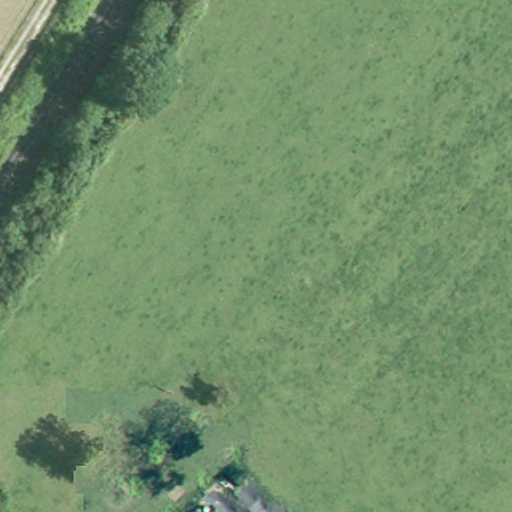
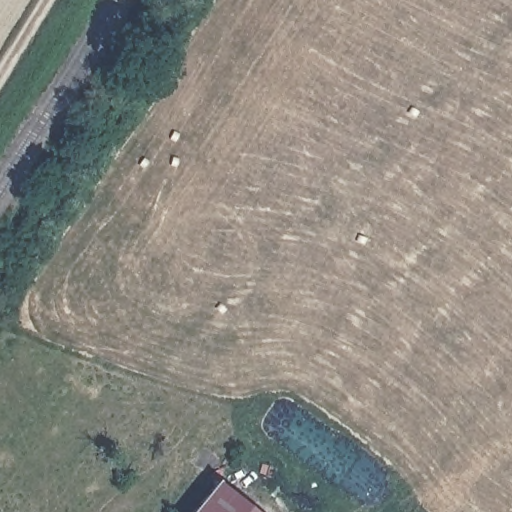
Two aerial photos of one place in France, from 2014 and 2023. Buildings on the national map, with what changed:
new [(219,483),(254,512),(196,512),(219,483)]

